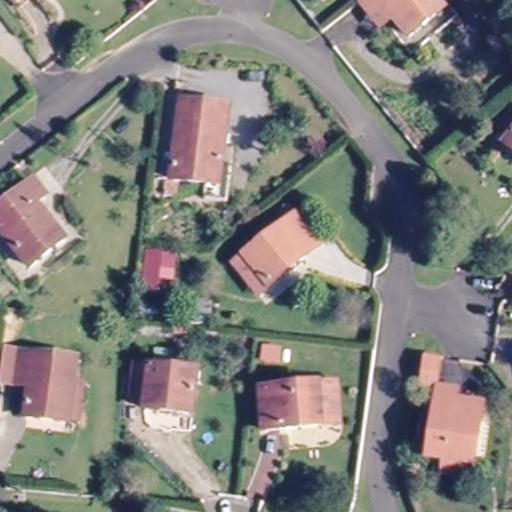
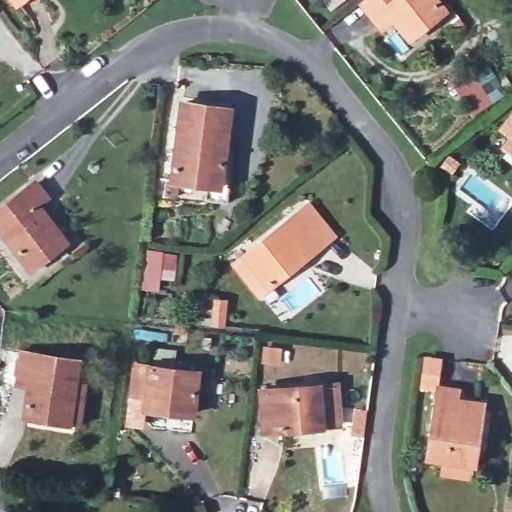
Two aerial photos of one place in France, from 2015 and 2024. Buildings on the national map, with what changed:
unchanged [(356,1),(357,0),(426,0),(439,15),(404,41),(390,21),(378,30),(369,19),(356,1)]
unchanged [(231,158),(226,195),(202,191),(204,179),(170,172),(180,97),(230,104),(222,156),(231,158)]
unchanged [(506,127),(498,116),(512,105),(512,147),(501,130),(506,127)]
unchanged [(59,236),(25,265),(0,234),(0,204),(31,180),(41,192),(31,200),(59,236)]
unchanged [(290,216),(314,246),(264,286),(240,256),(290,216)]
unchanged [(20,413),(25,382),(12,380),(17,347),(74,355),(71,377),(80,379),(73,423),(64,422),(20,413)]
unchanged [(130,404),(137,360),(198,368),(192,412),(130,404)]
unchanged [(326,432),(259,435),(254,386),(322,380),(326,432)]
unchanged [(444,455),(430,452),(440,386),(457,390),(455,397),(481,401),(473,459),(471,472),(441,466),(444,455)]

